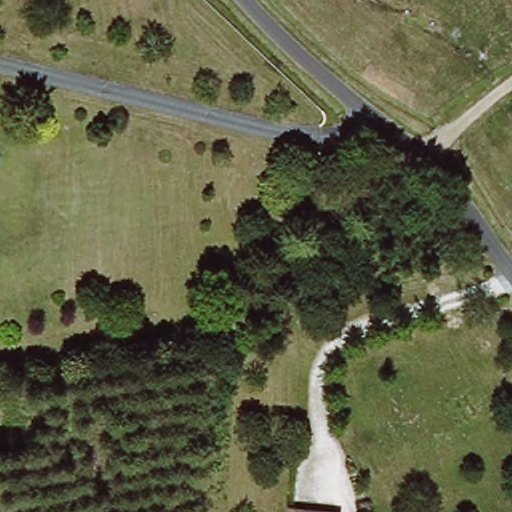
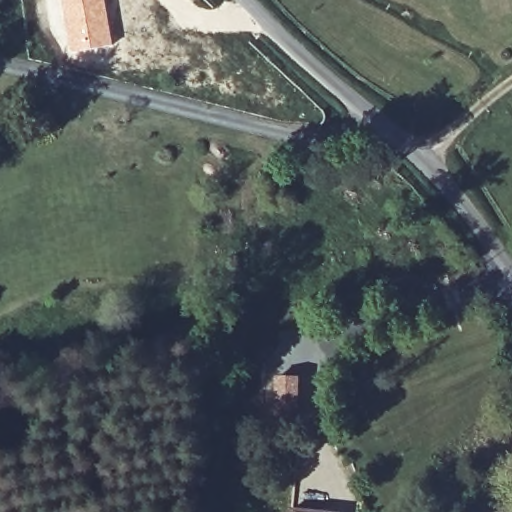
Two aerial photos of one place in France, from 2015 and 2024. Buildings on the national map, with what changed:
new [(68,54),(60,0),(105,0),(112,46),(68,54)]

